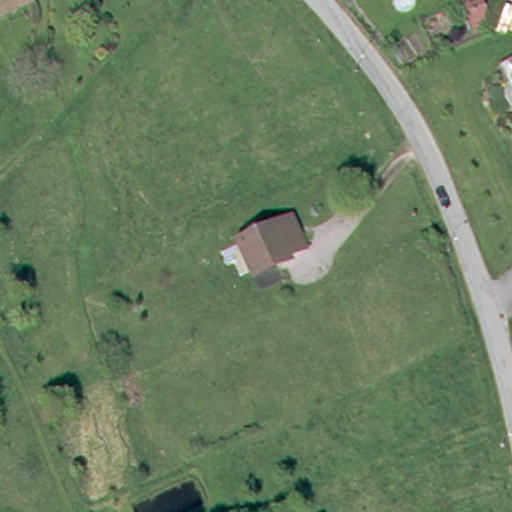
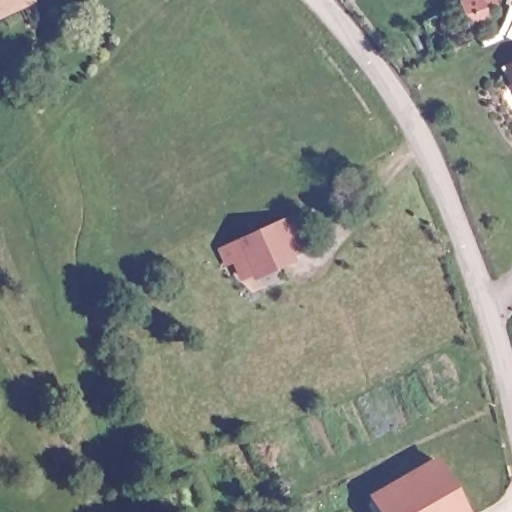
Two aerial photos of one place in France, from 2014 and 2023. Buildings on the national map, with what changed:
unchanged [(0,0),(16,0),(0,7),(0,0)]
unchanged [(459,11),(455,0),(481,0),(486,15),(470,21),(466,10),(459,11)]
unchanged [(509,84),(499,64),(512,57),(512,83),(509,84)]
unchanged [(268,263),(251,270),(236,238),(291,215),(301,240),(283,249),(286,256),(268,263)]
new [(467,512),(377,512),(366,494),(435,455),(467,512)]

